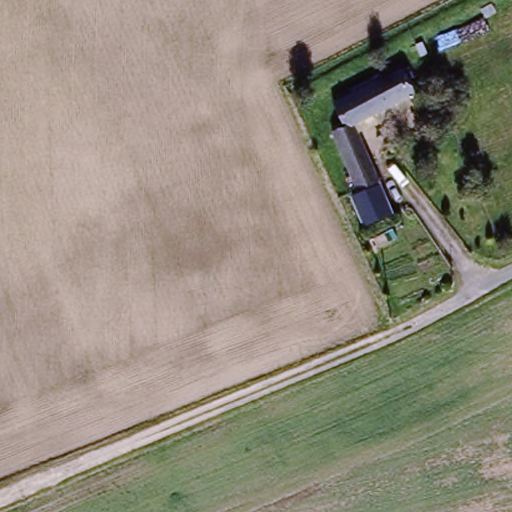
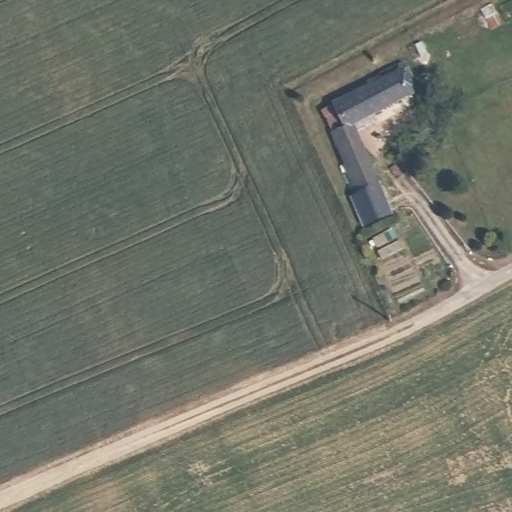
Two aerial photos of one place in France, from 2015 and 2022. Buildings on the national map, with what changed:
unchanged [(335,137),(344,129),(333,104),(405,68),(410,77),(404,81),(411,95),(355,123),(376,181),(355,189),(335,137)]

